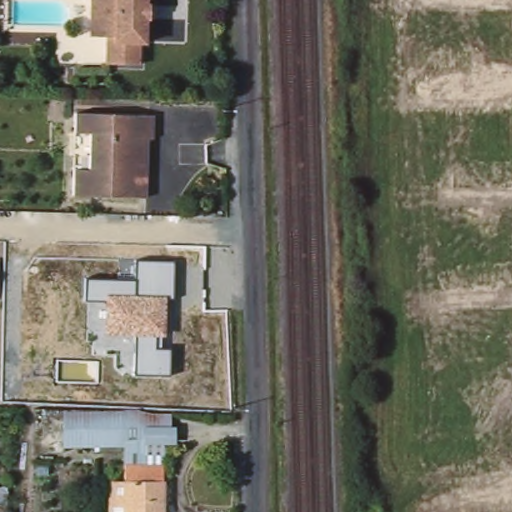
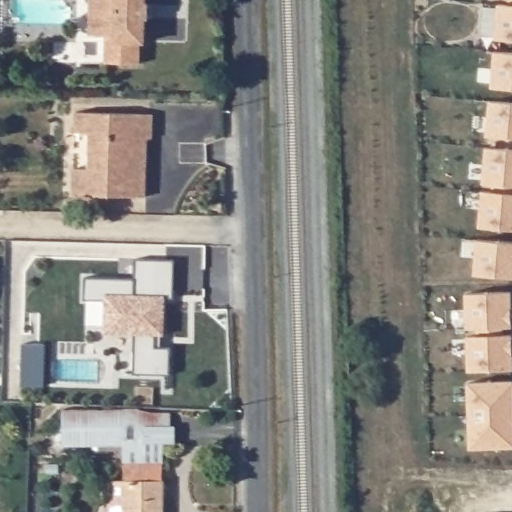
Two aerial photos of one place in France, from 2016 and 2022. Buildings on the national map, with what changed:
unchanged [(160,14),(156,14),(152,14),(151,38),(146,38),(146,60),(113,59),(114,31),(97,31),(98,0),(153,0),(152,0),(156,0),(160,0),(160,14)]
new [(498,0),(512,0),(512,41),(495,39),(498,0)]
new [(494,51),(512,53),(512,90),(491,87),(494,51)]
new [(489,100),(512,102),(512,139),(486,136),(489,100)]
unchanged [(157,114),(157,137),(151,141),(150,194),(113,205),(76,192),(79,170),(91,169),(92,131),(83,110),(157,114)]
new [(485,148),(512,151),(512,230),(478,227),(485,148)]
new [(476,239),(512,242),(512,279),(472,276),(476,239)]
unchanged [(172,300),(165,300),(165,336),(160,335),(160,349),(169,350),(169,375),(131,373),(134,336),(104,336),(105,301),(86,300),(87,280),(135,280),(135,261),(174,262),(172,300)]
new [(465,295),(511,292),(511,306),(512,306),(512,370),(468,371),(465,295)]
new [(512,381),(512,448),(470,449),(468,381),(512,381)]
unchanged [(139,412),(139,463),(119,463),(119,442),(60,443),(60,413),(139,412)]
unchanged [(171,427),(177,427),(175,446),(165,447),(164,463),(157,463),(139,463),(139,412),(170,413),(171,427)]
unchanged [(158,479),(159,480),(159,512),(119,512),(119,480),(119,463),(139,463),(157,463),(158,479)]
unchanged [(119,512),(104,512),(104,480),(119,480),(119,512)]
unchanged [(5,512),(0,512),(0,486),(6,486),(5,512)]

